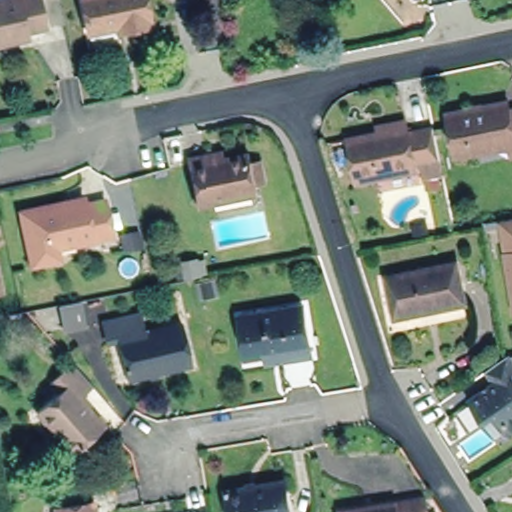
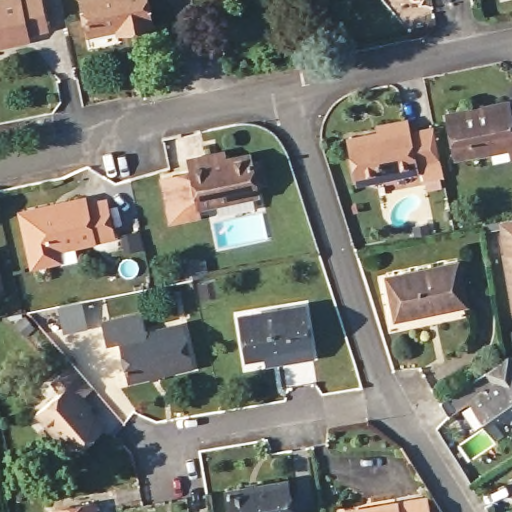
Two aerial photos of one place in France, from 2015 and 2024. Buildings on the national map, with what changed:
unchanged [(0,0),(33,0),(40,24),(22,29),(24,36),(0,42),(0,0)]
unchanged [(124,29),(122,23),(82,31),(76,0),(140,0),(144,24),(124,29)]
unchanged [(503,146),(450,157),(441,112),(502,100),(505,108),(512,106),(512,155),(506,156),(503,146)]
unchanged [(418,177),(416,162),(405,165),(406,168),(347,180),(338,137),(370,130),(370,125),(397,120),(398,125),(399,130),(423,125),(430,159),(433,175),(418,177)]
unchanged [(217,154),(219,159),(244,154),(246,164),(255,162),(260,183),(251,185),(252,194),(198,205),(193,205),(185,170),(183,160),(199,157),(217,154)]
new [(185,170),(193,205),(198,205),(200,217),(169,225),(158,175),(185,170)]
unchanged [(52,260),(34,263),(22,210),(84,197),(85,205),(106,200),(114,236),(59,249),(60,258),(52,260)]
unchanged [(508,236),(506,220),(512,219),(512,257),(508,236)]
unchanged [(465,305),(395,318),(385,276),(456,261),(465,305)]
unchanged [(88,326),(65,330),(60,300),(82,295),(88,326)]
unchanged [(255,350),(237,353),(230,310),(295,300),(302,351),(266,357),(256,358),(255,350)]
unchanged [(179,318),(187,361),(123,375),(115,337),(104,338),(100,316),(137,308),(141,326),(179,318)]
unchanged [(512,371),(512,428),(503,435),(500,428),(487,437),(462,401),(486,383),(478,371),(502,355),(512,371)]
unchanged [(78,400),(100,426),(67,452),(32,413),(57,392),(48,381),(69,363),(90,388),(78,400)]
unchanged [(225,490),(285,479),(290,512),(229,512),(225,490)]
unchanged [(330,511),(414,497),(416,512),(331,512),(330,511)]
unchanged [(49,510),(89,502),(91,512),(49,512),(49,510)]

